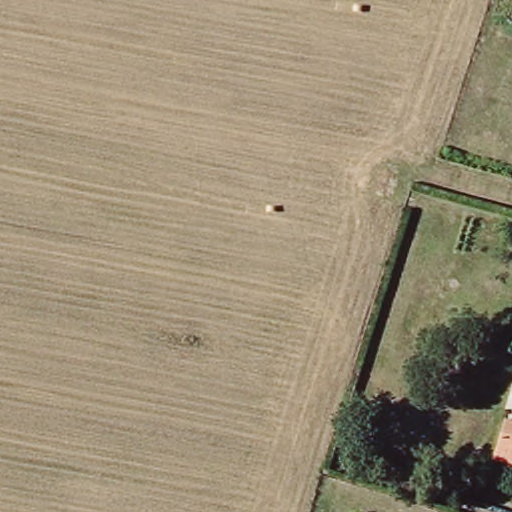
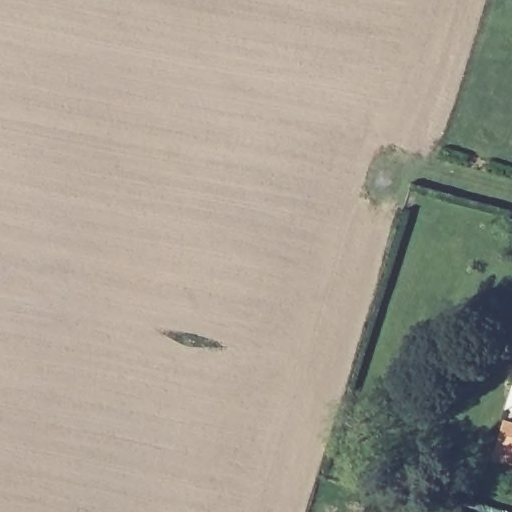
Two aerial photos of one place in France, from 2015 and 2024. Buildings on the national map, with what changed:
unchanged [(494,460),(507,420),(512,422),(512,466),(494,460)]

